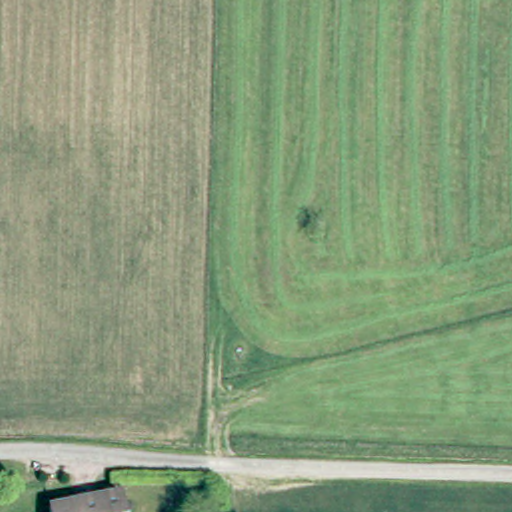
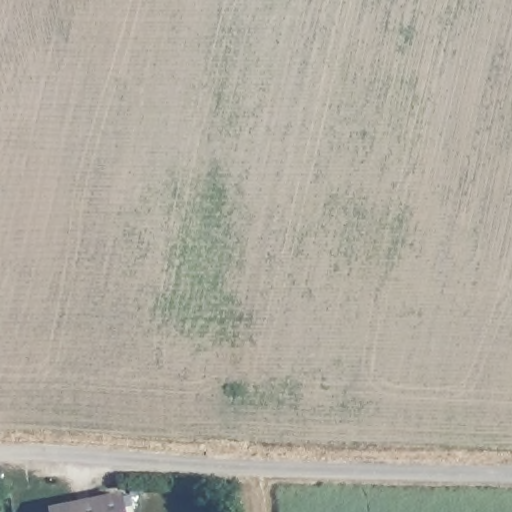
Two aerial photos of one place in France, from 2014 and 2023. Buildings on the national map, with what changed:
unchanged [(73,512),(119,501),(121,512),(73,512)]

